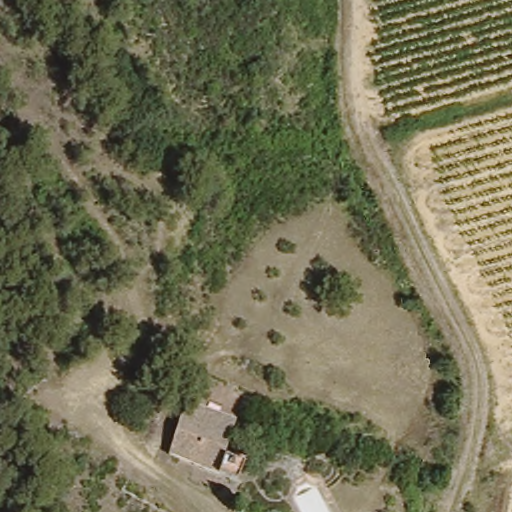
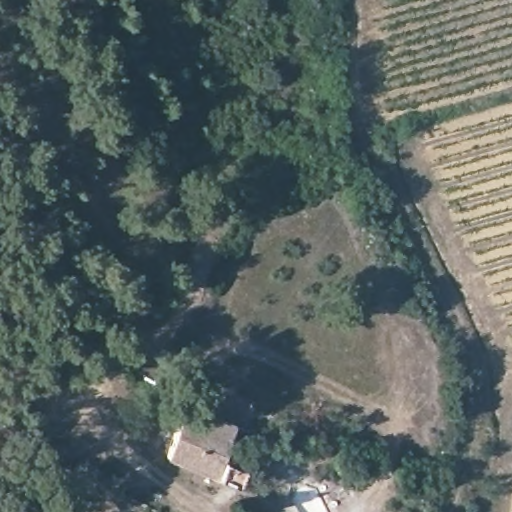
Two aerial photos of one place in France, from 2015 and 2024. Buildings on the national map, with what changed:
unchanged [(208,477),(158,457),(178,407),(227,424),(215,460),(233,467),(227,485),(208,477)]

